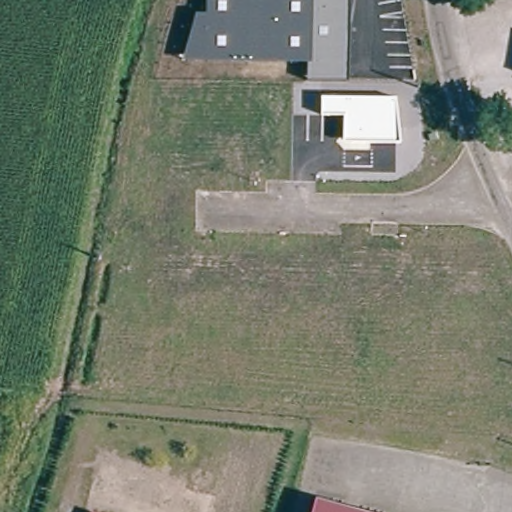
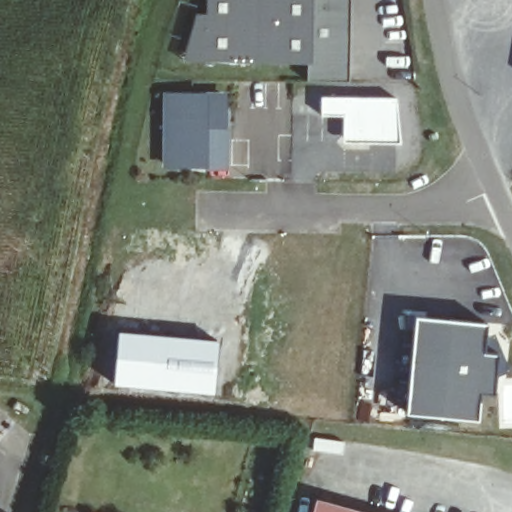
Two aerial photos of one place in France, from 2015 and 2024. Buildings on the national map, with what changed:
unchanged [(347,81),(309,80),(310,61),(183,60),(196,13),(206,13),(207,0),(348,0),(347,81)]
unchanged [(320,116),(320,96),(394,98),(398,142),(343,143),(342,116),(320,116)]
new [(222,169),(163,169),(164,99),(222,100),(222,130),(222,139),(222,169)]
new [(413,315),(485,322),(482,350),(497,352),(492,393),(480,392),(477,420),(404,413),(413,315)]
new [(116,329),(218,338),(213,394),(111,385),(116,329)]
unchanged [(315,512),(318,500),(361,512),(315,512)]

